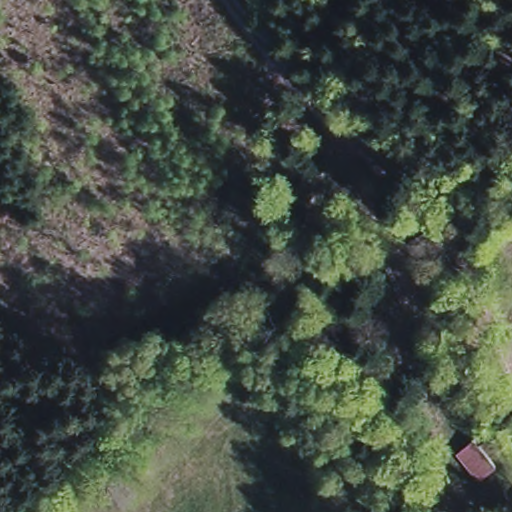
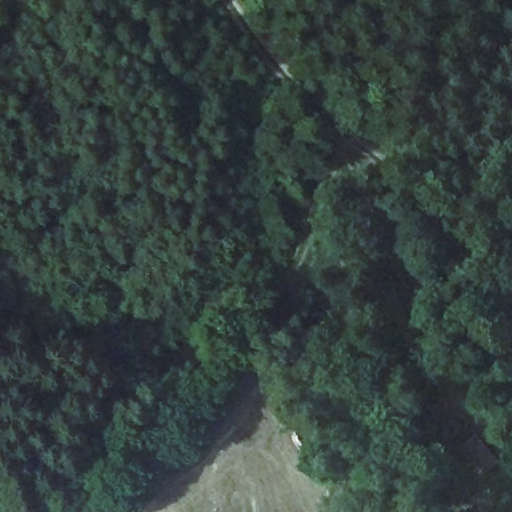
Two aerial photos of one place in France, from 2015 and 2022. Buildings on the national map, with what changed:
unchanged [(500,461),(480,473),(456,448),(477,431),(500,461)]

